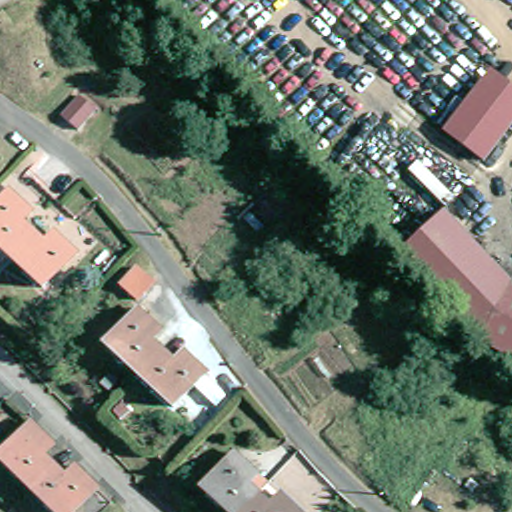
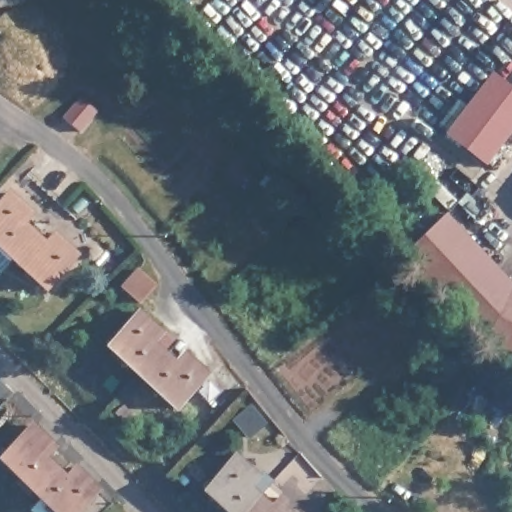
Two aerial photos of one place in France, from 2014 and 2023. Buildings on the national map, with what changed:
unchanged [(512,129),(485,163),(444,131),(489,73),(512,90),(512,129)]
unchanged [(65,124),(82,102),(99,115),(82,137),(65,124)]
unchanged [(65,225),(86,245),(55,278),(24,249),(12,262),(0,252),(0,203),(17,184),(39,203),(32,211),(47,224),(57,233),(65,225)]
unchanged [(482,343),(396,255),(440,213),(512,282),(512,287),(510,289),(505,298),(482,343)]
unchanged [(512,359),(482,343),(510,289),(512,291),(512,359)]
unchanged [(166,348),(142,375),(109,345),(140,310),(166,326),(155,339),(166,348)]
unchanged [(180,360),(188,351),(209,371),(176,405),(142,375),(166,348),(180,360)]
unchanged [(2,460),(32,426),(56,446),(47,455),(58,464),(34,489),(2,460)]
unchanged [(240,458),(263,479),(254,488),(265,498),(252,512),(228,512),(207,493),(240,458)]
unchanged [(100,485),(75,512),(59,512),(34,489),(58,464),(70,474),(78,465),(100,485)]
unchanged [(300,512),(252,512),(265,498),(275,507),(285,497),(300,512)]

